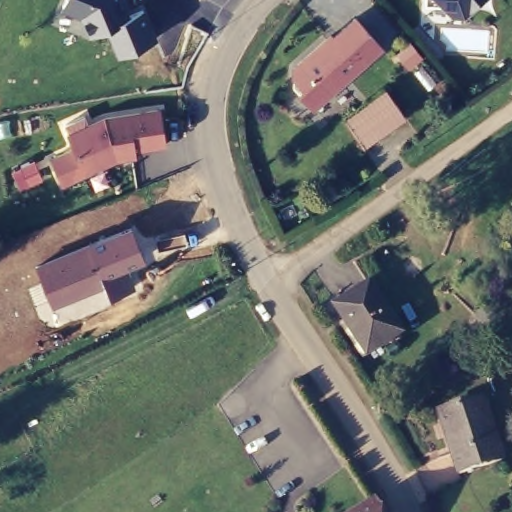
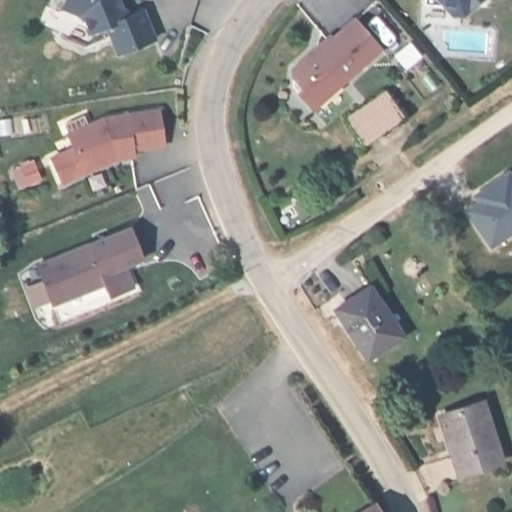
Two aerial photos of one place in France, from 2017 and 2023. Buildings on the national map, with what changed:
unchanged [(116,55),(105,28),(86,33),(80,16),(58,7),(62,0),(122,0),(128,18),(146,9),(156,38),(116,55)]
unchanged [(440,0),(481,0),(458,19),(440,0)]
unchanged [(294,92),(301,84),(289,70),(358,19),(387,49),(314,111),(294,92)]
unchanged [(401,80),(418,108),(362,145),(344,117),(401,80)]
unchanged [(166,144),(136,150),(136,155),(111,161),(63,184),(50,156),(72,145),(66,132),(105,116),(158,107),(166,144)]
new [(465,207),(475,200),(471,192),(509,167),(512,172),(512,232),(492,246),(465,207)]
unchanged [(131,225),(146,261),(128,268),(136,288),(110,299),(105,288),(53,307),(36,265),(131,225)]
unchanged [(405,333),(371,360),(336,313),(372,286),(405,333)]
unchanged [(508,460),(463,475),(443,419),(489,403),(508,460)]
unchanged [(379,512),(371,512),(377,509),(379,512)]

